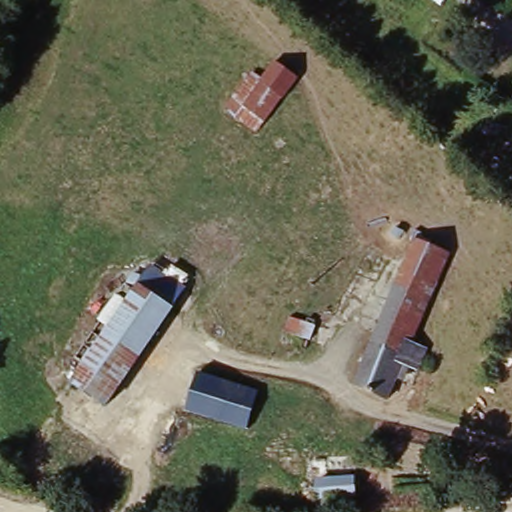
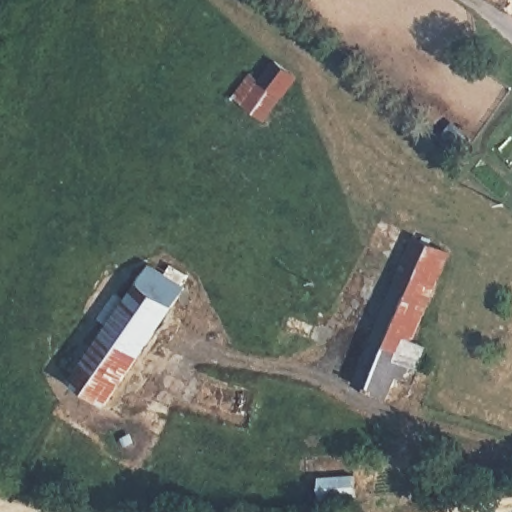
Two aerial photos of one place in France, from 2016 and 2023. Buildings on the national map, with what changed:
unchanged [(273,61),(295,75),(256,133),(233,119),(273,61)]
unchanged [(415,338),(430,346),(421,368),(412,364),(409,371),(401,368),(392,389),(357,374),(418,234),(452,249),(415,338)]
unchanged [(189,289),(109,404),(77,383),(90,364),(79,357),(122,295),(132,303),(156,267),(189,289)]
demolished [(257,392),(245,428),(186,411),(200,373),(257,392)]
new [(355,476),(355,505),(317,506),(317,478),(355,476)]

